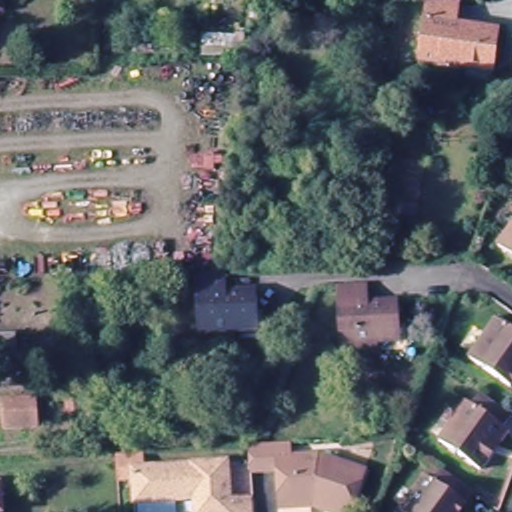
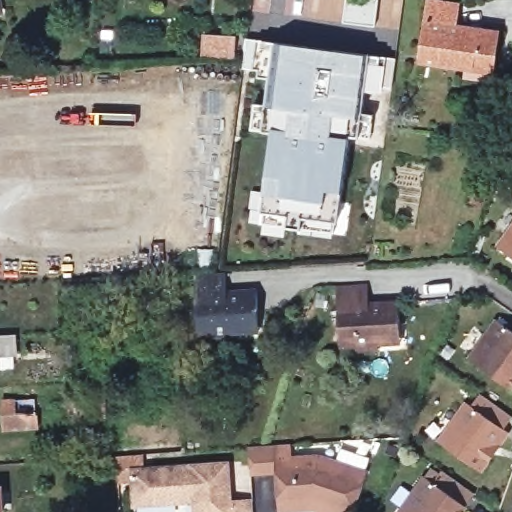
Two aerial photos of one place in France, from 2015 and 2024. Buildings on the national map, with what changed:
unchanged [(6,0),(10,19),(0,21),(0,0),(6,0)]
new [(369,0),(377,1),(374,28),(342,24),(345,0),(369,0)]
unchanged [(458,8),(456,31),(498,35),(491,76),(420,68),(429,6),(458,8)]
unchanged [(204,55),(206,35),(248,36),(245,56),(204,55)]
new [(365,54),(396,59),(393,88),(376,86),(370,138),(357,136),(348,136),(342,193),(337,223),(333,232),(301,228),(287,226),(264,223),(265,212),(262,212),(264,195),(266,176),(272,133),(261,129),(251,130),(253,111),(254,105),(265,107),(275,108),(279,78),(268,79),(258,76),(259,70),(245,68),(249,41),(284,44),(365,54)]
unchanged [(512,229),(512,256),(499,247),(512,229)]
unchanged [(253,337),(237,338),(237,343),(217,344),(216,339),(202,340),(197,281),(222,280),(228,280),(229,299),(259,297),(261,316),(262,337),(253,337)]
unchanged [(398,349),(380,350),(380,356),(360,357),(359,352),(343,352),(340,293),(370,291),(372,312),(401,310),(402,328),(403,349),(398,349)]
unchanged [(498,323),(512,333),(512,390),(471,361),(498,323)]
unchanged [(8,343),(9,362),(0,363),(0,343),(8,343)]
unchanged [(104,420),(87,421),(86,414),(70,414),(69,390),(85,389),(103,388),(104,420)]
unchanged [(442,446),(470,406),(473,409),(483,396),(512,417),(512,421),(505,431),(510,434),(499,450),(493,458),(482,475),(442,446)]
unchanged [(37,403),(38,434),(3,435),(1,405),(37,403)]
unchanged [(131,445),(133,459),(107,461),(106,447),(131,445)]
unchanged [(295,461),(323,458),(369,474),(354,512),(328,512),(317,508),(285,509),(283,473),(256,474),(254,447),(262,447),(294,445),(295,461)]
new [(386,446),(398,450),(394,458),(383,455),(386,446)]
unchanged [(201,510),(167,512),(141,512),(140,488),(123,489),(122,465),(139,464),(139,478),(233,473),(237,510),(258,509),(258,512),(201,512),(201,510)]
unchanged [(429,480),(440,487),(449,476),(478,497),(467,512),(406,512),(429,480)]
unchanged [(1,489),(3,512),(0,512),(0,489),(1,489)]

